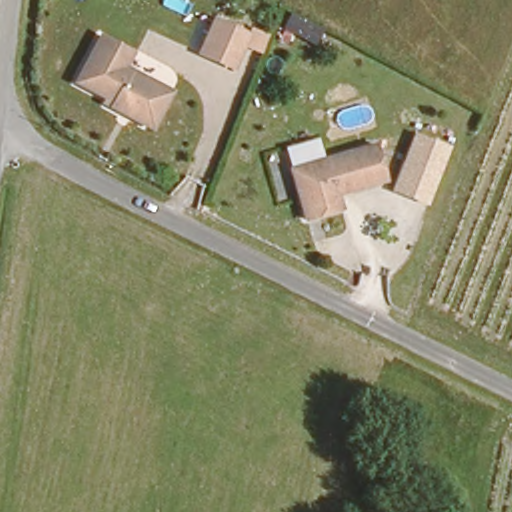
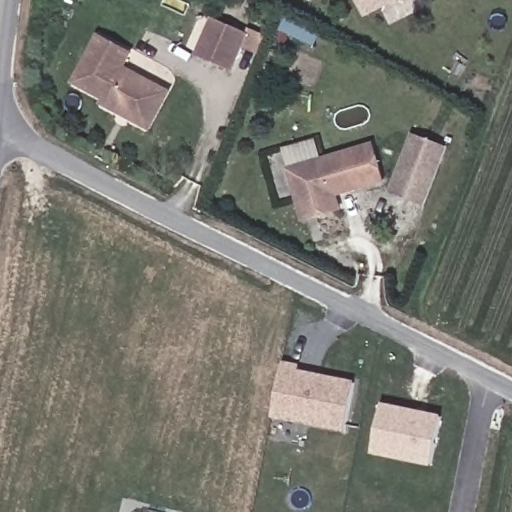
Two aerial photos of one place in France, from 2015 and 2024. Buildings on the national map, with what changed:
new [(364,19),(355,0),(403,0),(364,19)]
unchanged [(247,36),(233,67),(200,52),(214,21),(247,36)]
unchanged [(139,129),(126,121),(99,107),(101,102),(62,82),(88,31),(121,47),(115,59),(151,77),(165,86),(139,129)]
unchanged [(390,191),(412,135),(445,147),(425,204),(390,191)]
unchanged [(281,166),(368,142),(379,182),(325,197),(328,207),(295,216),(281,166)]
new [(272,418),(284,361),(301,365),(300,370),(356,381),(346,433),(272,418)]
new [(371,455),(382,403),(442,416),(432,467),(371,455)]

